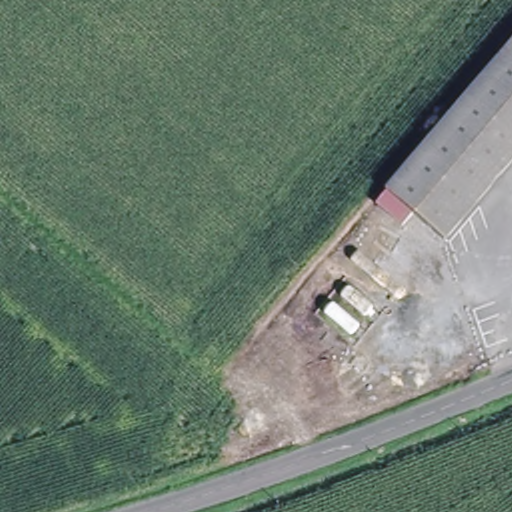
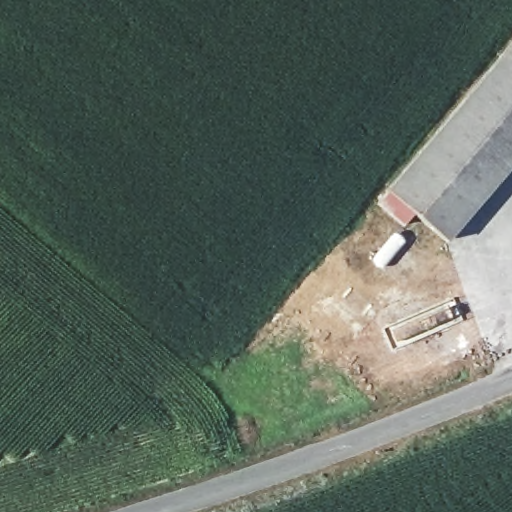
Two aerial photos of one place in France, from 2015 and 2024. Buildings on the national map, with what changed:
unchanged [(512,165),(451,237),(391,184),(512,45),(512,165)]

